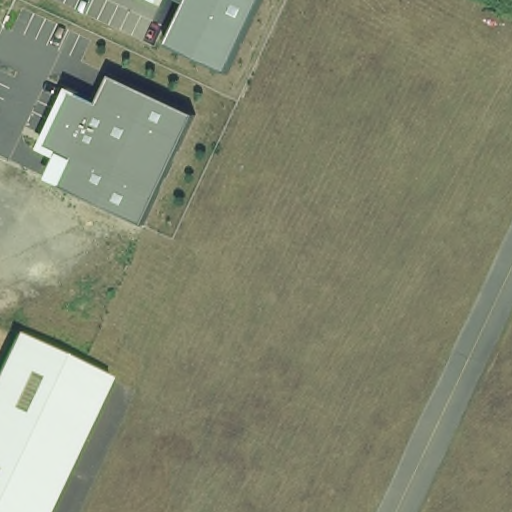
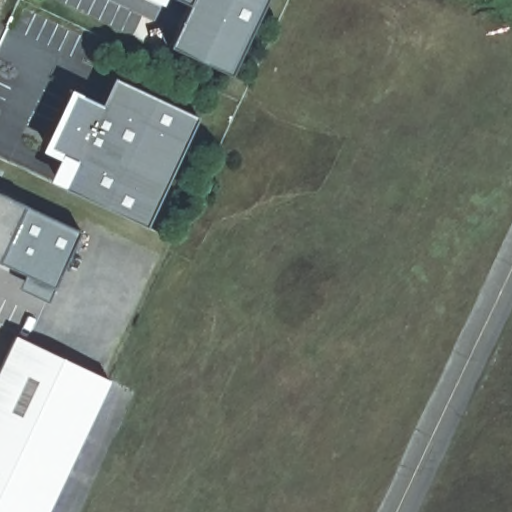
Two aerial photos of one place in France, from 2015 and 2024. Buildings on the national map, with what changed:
unchanged [(169,43),(187,0),(262,0),(228,70),(169,43)]
unchanged [(73,159),(45,146),(71,92),(68,90),(69,89),(99,103),(113,76),(196,115),(144,226),(60,187),(73,159)]
new [(25,273),(0,260),(0,195),(22,205),(75,229),(52,284),(45,298),(18,285),(25,273)]
unchanged [(45,512),(0,512),(0,367),(15,335),(108,379),(45,512)]

